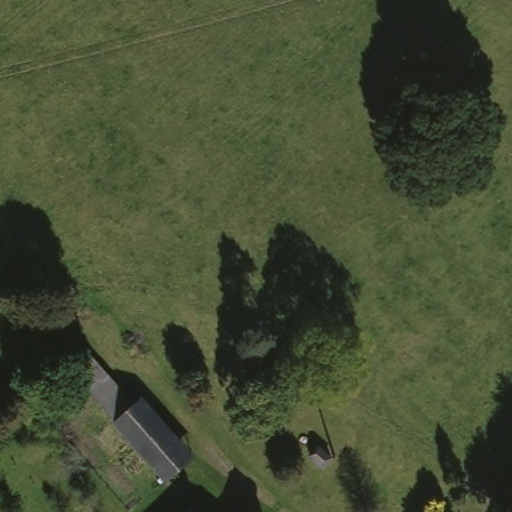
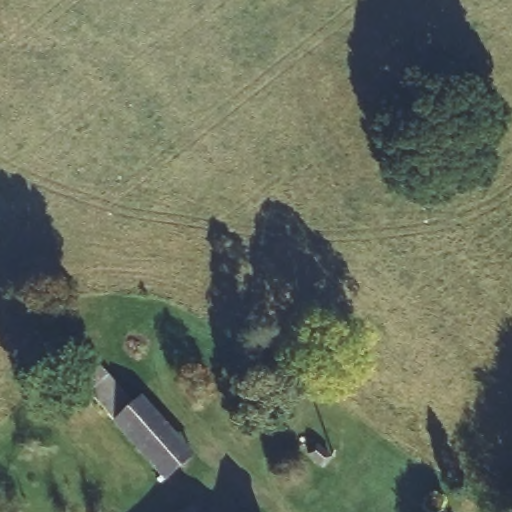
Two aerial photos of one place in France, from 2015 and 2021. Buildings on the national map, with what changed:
unchanged [(67,372),(86,354),(136,409),(117,426),(67,372)]
unchanged [(136,409),(142,403),(195,461),(170,484),(156,468),(117,426),(136,409)]
unchanged [(209,512),(187,512),(199,501),(209,512)]

